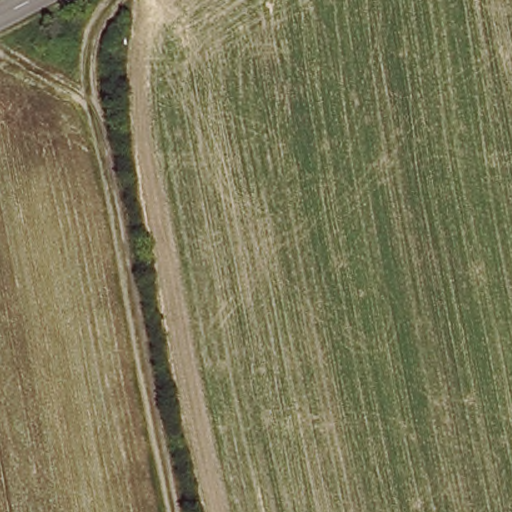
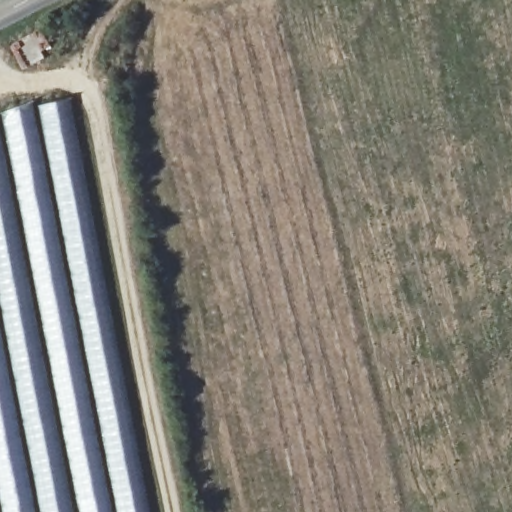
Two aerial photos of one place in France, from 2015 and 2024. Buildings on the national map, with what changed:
new [(31,101),(33,108),(70,99),(150,512),(0,512),(0,113),(31,101)]

